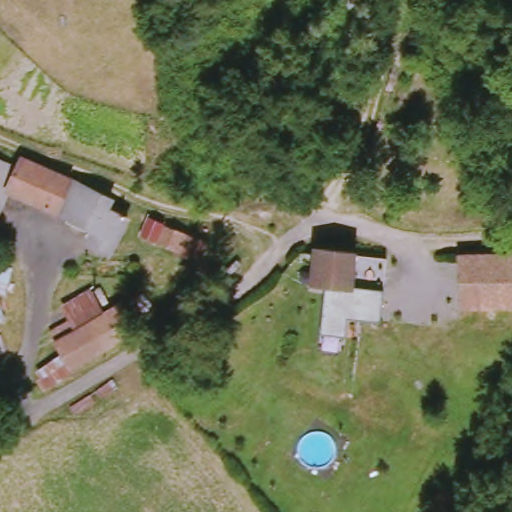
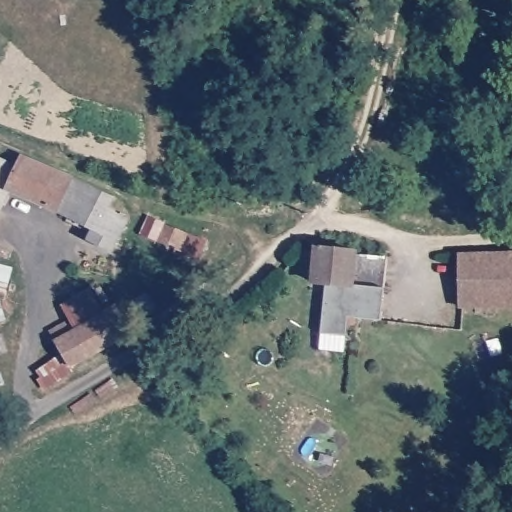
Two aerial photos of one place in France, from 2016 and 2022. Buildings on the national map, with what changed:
unchanged [(22,173),(29,156),(77,179),(63,208),(17,185),(22,173)]
unchanged [(0,220),(0,163),(22,173),(17,185),(0,220)]
unchanged [(77,179),(117,199),(115,204),(133,214),(118,245),(97,235),(101,225),(63,208),(77,179)]
unchanged [(202,259),(143,237),(154,217),(213,242),(202,259)]
unchanged [(318,253),(321,252),(354,255),(350,285),(325,283),(316,283),(318,253)]
unchanged [(512,257),(512,306),(458,307),(457,258),(512,257)]
unchanged [(16,269),(11,284),(19,285),(16,294),(2,297),(6,323),(0,324),(0,265),(16,269)]
unchanged [(378,318),(345,315),(343,334),(321,332),(325,283),(350,285),(382,288),(378,318)]
unchanged [(37,379),(42,377),(38,369),(46,366),(40,359),(55,343),(51,333),(71,322),(63,304),(96,288),(108,313),(118,329),(129,324),(134,336),(73,370),(46,394),(37,379)]

